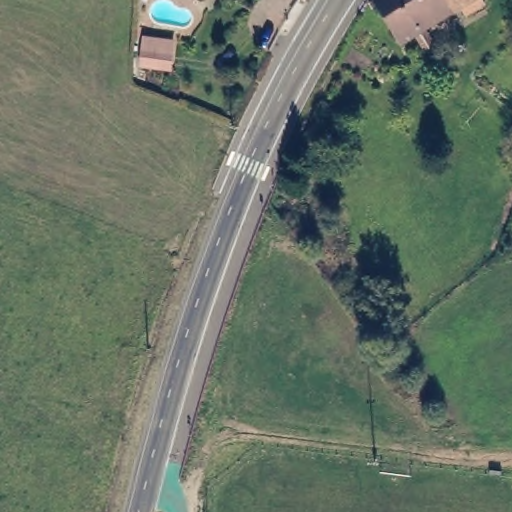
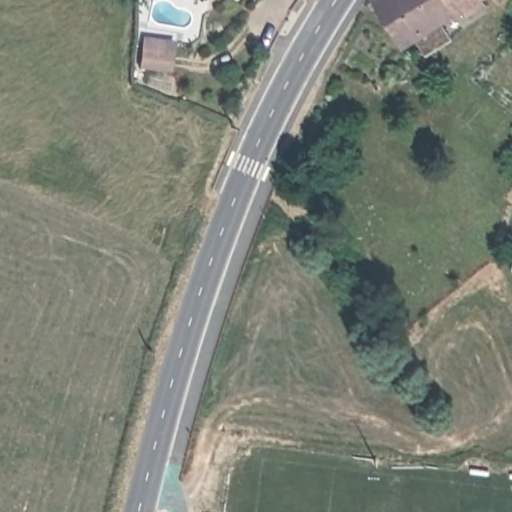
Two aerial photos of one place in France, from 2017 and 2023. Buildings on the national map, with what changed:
unchanged [(475,2),(458,11),(453,3),(414,26),(425,44),(415,49),(405,33),(392,40),(367,0),(474,0),(475,2)]
unchanged [(142,65),(144,47),(145,37),(173,40),(172,51),(170,68),(142,65)]

